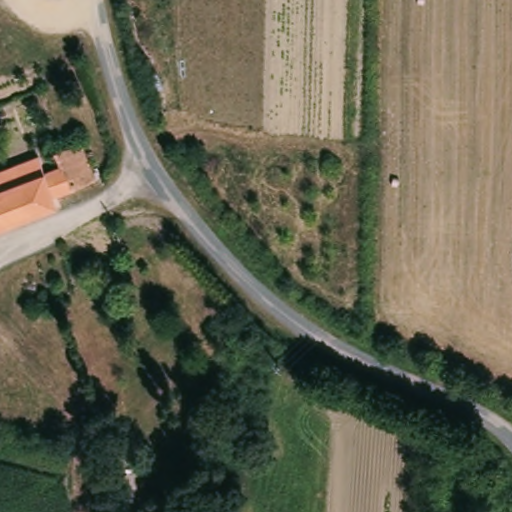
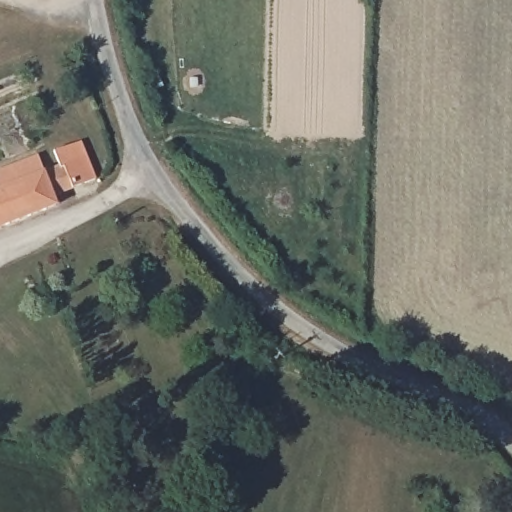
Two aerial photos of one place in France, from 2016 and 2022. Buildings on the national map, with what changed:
unchanged [(0,189),(5,187),(0,174),(0,172),(19,165),(19,164),(42,155),(50,170),(65,164),(60,149),(86,140),(100,177),(59,194),(61,204),(0,228),(0,189)]

